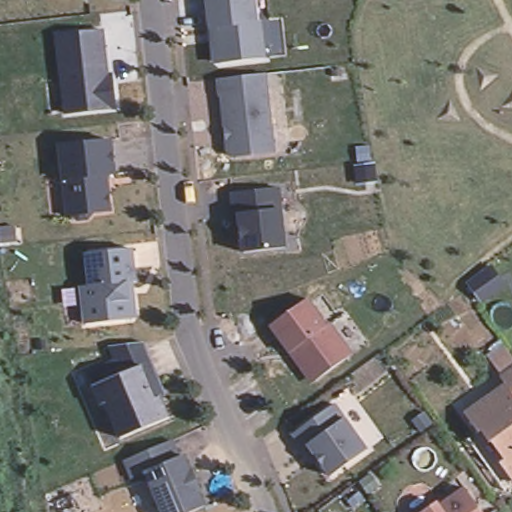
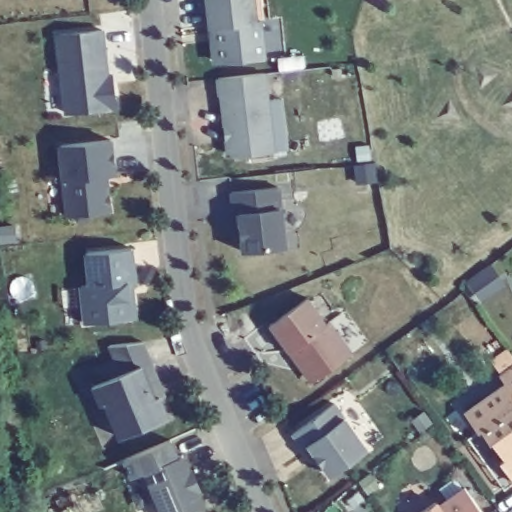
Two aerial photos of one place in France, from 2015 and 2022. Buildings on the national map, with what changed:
unchanged [(260,22),(265,59),(220,64),(214,60),(212,48),(217,42),(215,28),(210,29),(207,0),(253,0),(255,23),(260,22)]
unchanged [(113,84),(115,108),(67,114),(57,36),(102,31),(107,76),(112,76),(113,84)]
unchanged [(260,74),(265,74),(273,153),(233,157),(227,153),(227,141),(230,136),(230,126),(225,127),(221,96),(220,96),(218,80),(260,74)]
unchanged [(110,141),(114,175),(102,176),(104,187),(107,189),(109,212),(90,214),(86,219),(77,220),(72,216),(67,216),(59,146),(110,141)]
unchanged [(277,189),(284,248),(242,253),(238,215),(234,216),(231,194),(277,189)]
unchanged [(130,249),(134,283),(126,283),(127,299),(132,303),(134,315),(130,320),(85,325),(80,288),(89,287),(85,254),(130,249)]
unchanged [(307,299),(325,325),(329,323),(351,355),(315,381),(307,380),(300,370),(302,363),(292,350),(289,353),(269,326),(307,299)]
unchanged [(164,390),(159,392),(168,413),(120,433),(105,398),(100,400),(92,381),(95,380),(89,367),(115,356),(109,341),(142,338),(158,376),(164,390)]
unchanged [(499,458),(505,454),(492,436),(490,438),(481,426),(478,428),(465,409),(505,381),(500,373),(512,363),(512,476),(499,458)]
unchanged [(302,449),(292,434),(334,404),(366,450),(330,476),(317,460),(312,463),(302,449)]
unchanged [(177,458),(182,456),(189,472),(191,471),(199,490),(197,491),(204,507),(191,512),(162,512),(145,473),(131,478),(124,460),(132,456),(170,440),(177,458)]
unchanged [(440,503),(443,507),(469,488),(486,512),(427,512),(440,503)]

